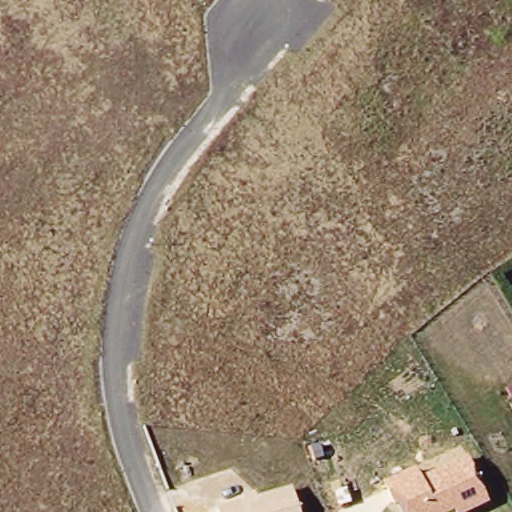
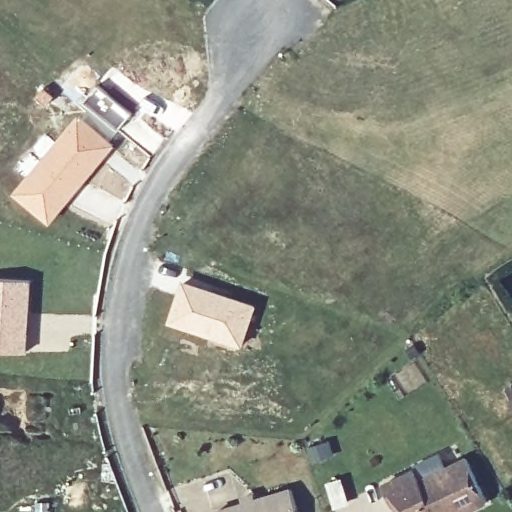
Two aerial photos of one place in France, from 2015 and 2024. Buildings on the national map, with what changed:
new [(97,82),(133,112),(110,140),(91,121),(95,117),(80,104),(97,82)]
new [(39,158),(30,150),(45,132),(55,140),(79,113),(91,121),(110,140),(116,145),(50,224),(12,192),(39,158)]
new [(32,279),(27,353),(0,352),(0,277),(32,279)]
new [(182,279),(258,304),(241,351),(166,323),(182,279)]
unchanged [(471,512),(400,512),(398,508),(394,510),(383,483),(416,470),(420,477),(466,456),(488,504),(471,512)]
unchanged [(255,493),(256,498),(292,487),(299,512),(218,512),(216,508),(243,501),(242,496),(255,493)]

